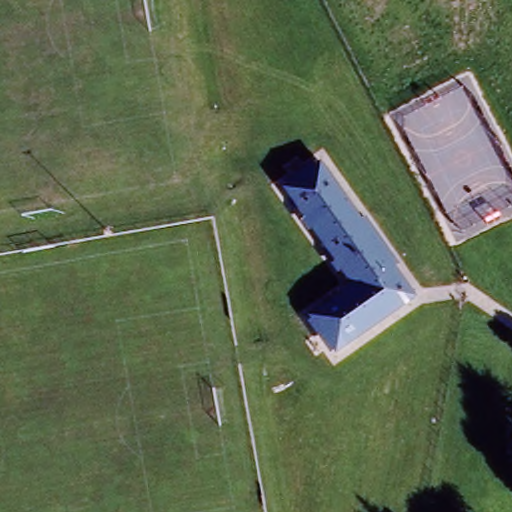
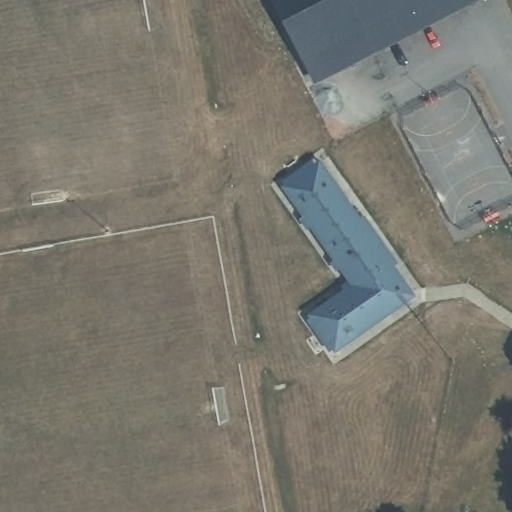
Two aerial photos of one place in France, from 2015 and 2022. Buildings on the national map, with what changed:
new [(272,0),(483,0),(316,85),(272,0)]
unchanged [(311,164),(409,284),(408,296),(342,353),(313,318),(353,285),(276,193),(311,164)]

